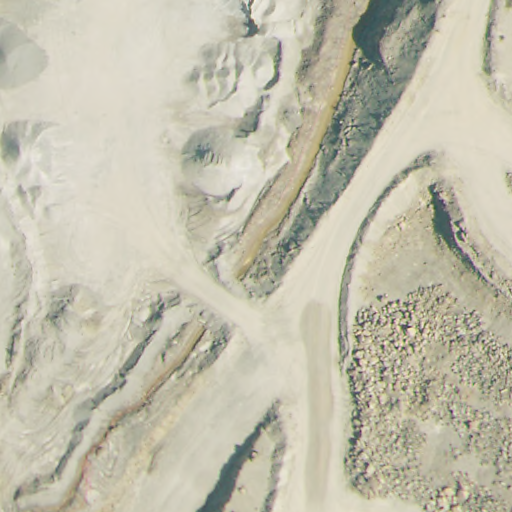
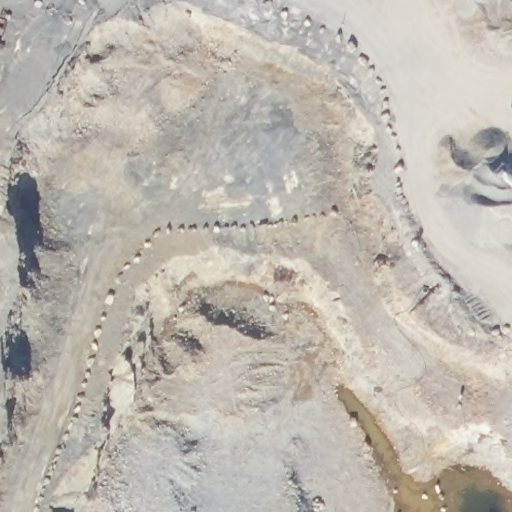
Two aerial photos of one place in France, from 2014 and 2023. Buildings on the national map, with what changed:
[]

